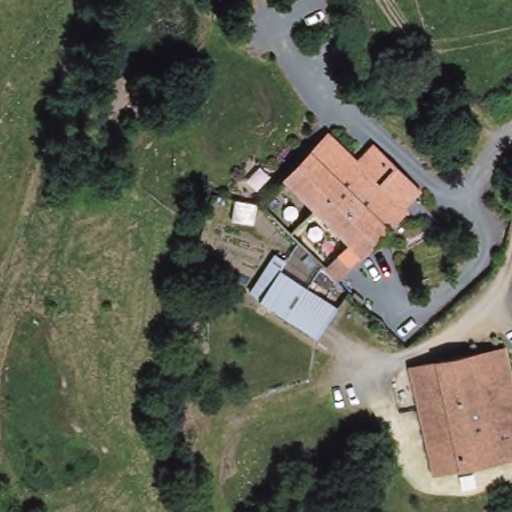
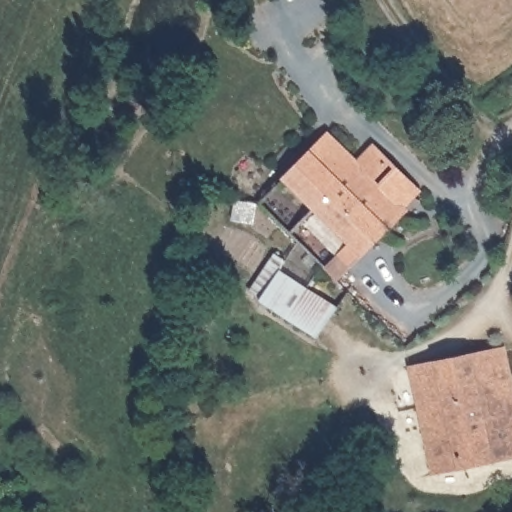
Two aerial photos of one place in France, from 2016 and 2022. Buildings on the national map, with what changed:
unchanged [(357,160),(376,141),(425,190),(407,206),(411,210),(340,279),(266,210),(260,204),(330,134),(357,160)]
unchanged [(284,268),(340,308),(319,340),(261,300),(284,268)]
unchanged [(512,387),(512,456),(427,474),(405,365),(504,346),(512,387)]

